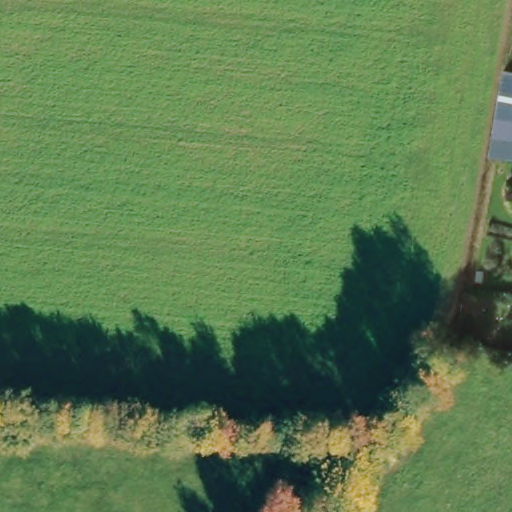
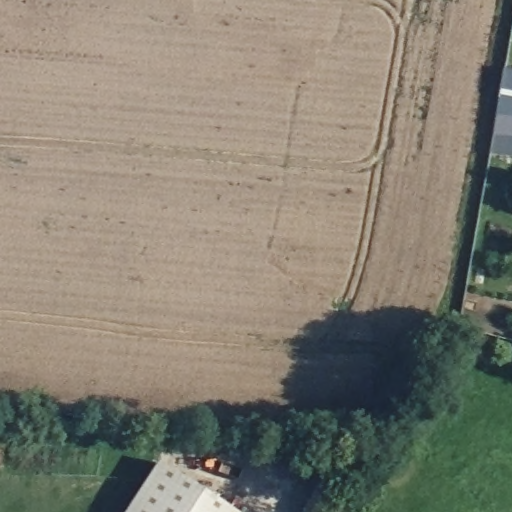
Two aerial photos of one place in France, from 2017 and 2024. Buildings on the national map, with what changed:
unchanged [(507,71),(512,72),(512,156),(491,154),(498,118),(507,71)]
new [(158,463),(234,512),(127,512),(158,463)]

